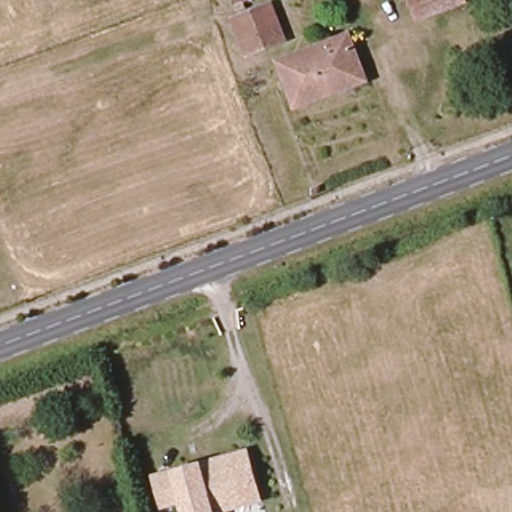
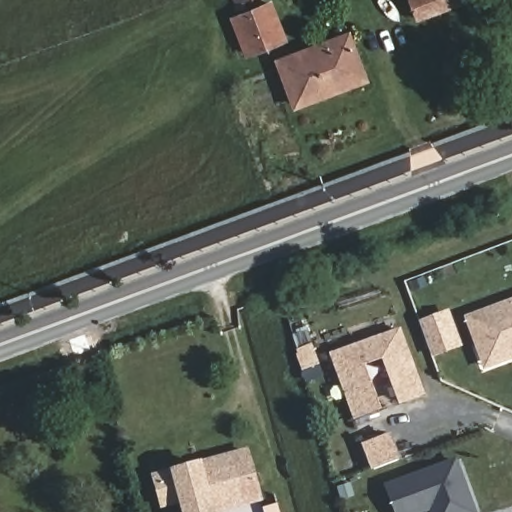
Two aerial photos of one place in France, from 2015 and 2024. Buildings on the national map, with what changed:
unchanged [(232,0),(256,0),(236,8),(232,0)]
unchanged [(413,22),(405,0),(467,0),(468,4),(413,22)]
unchanged [(272,3),(287,41),(244,61),(225,20),(272,3)]
unchanged [(343,48),(355,83),(293,105),(281,69),(343,48)]
new [(483,370),(462,315),(512,297),(512,360),(483,370)]
new [(452,348),(436,354),(424,322),(452,312),(458,327),(464,343),(452,348)]
new [(360,418),(351,393),(336,354),(403,329),(427,393),(405,401),(387,355),(365,364),(373,385),(382,410),(360,418)]
new [(392,436),(402,461),(377,470),(367,445),(392,436)]
unchanged [(168,470),(199,461),(247,448),(261,502),(225,512),(180,512),(178,506),(159,510),(149,474),(168,470)]
new [(429,511),(428,512),(393,512),(383,485),(456,458),(476,512),(429,512),(429,511)]

